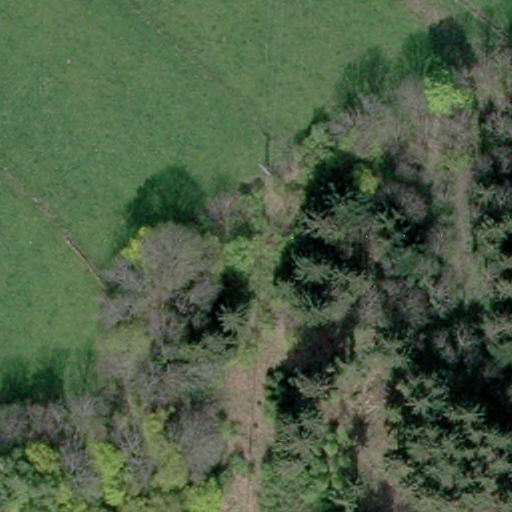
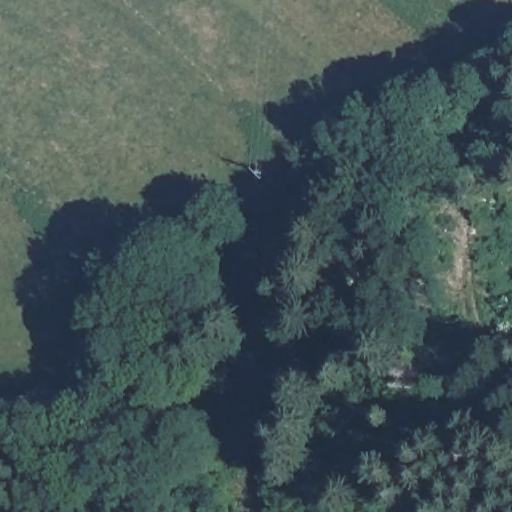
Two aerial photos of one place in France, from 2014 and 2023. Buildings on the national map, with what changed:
[]

